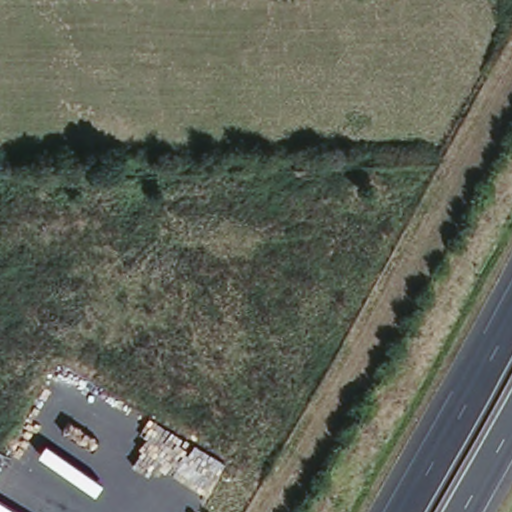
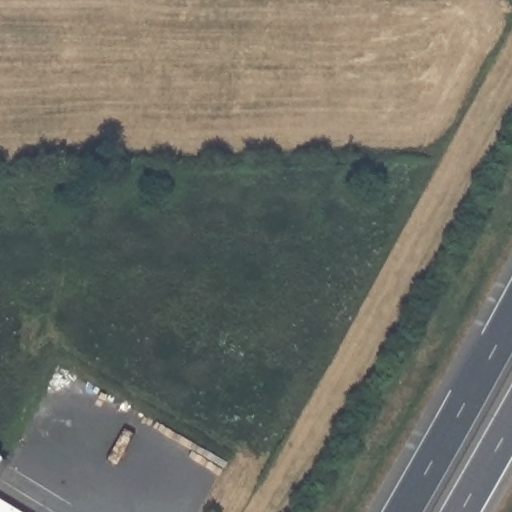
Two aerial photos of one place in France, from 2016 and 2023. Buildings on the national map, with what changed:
unchanged [(0,463),(0,458),(2,460),(0,463)]

